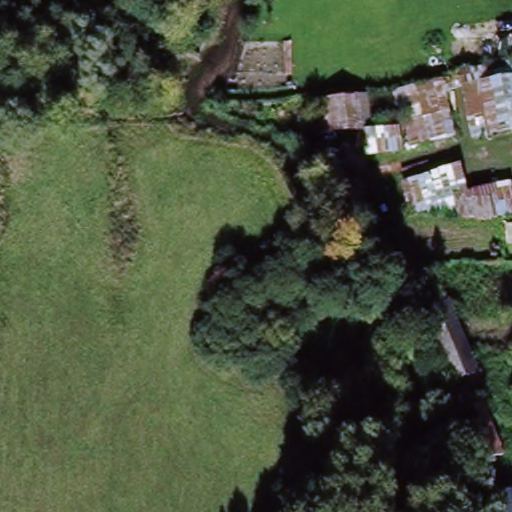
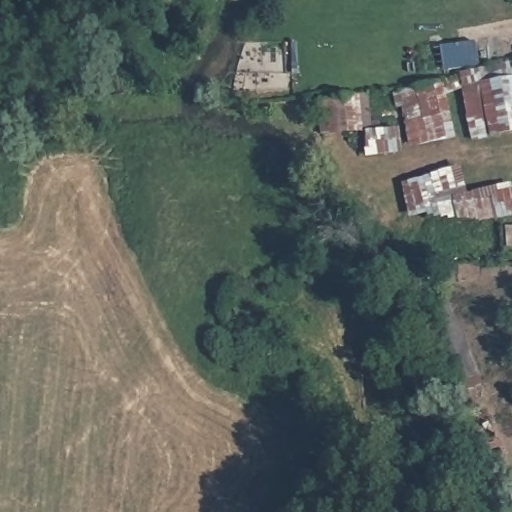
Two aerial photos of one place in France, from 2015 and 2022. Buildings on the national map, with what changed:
unchanged [(460,77),(512,69),(512,140),(470,146),(460,77)]
unchanged [(368,95),(371,122),(398,119),(394,94),(460,77),(462,93),(444,101),(452,140),(404,150),(404,155),(367,159),(364,134),(319,138),(317,100),(368,95)]
unchanged [(453,225),(440,172),(456,169),(465,193),(506,183),(509,191),(496,194),(502,222),(453,225)]
unchanged [(509,191),(512,191),(512,220),(502,222),(496,194),(509,191)]
unchanged [(473,466),(471,467),(451,422),(458,420),(451,398),(458,395),(455,385),(452,385),(425,303),(450,294),(482,388),(467,393),(475,413),(485,410),(504,457),(492,461),(499,479),(481,486),(473,466)]
unchanged [(503,512),(499,495),(512,492),(512,512),(503,512)]

